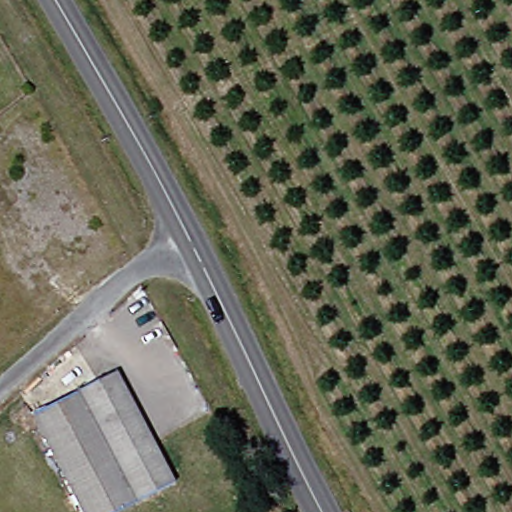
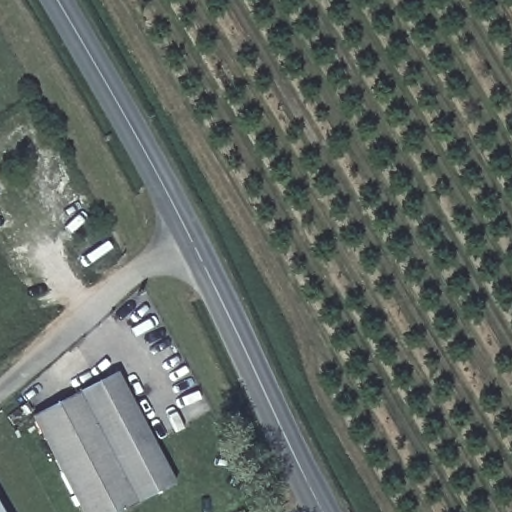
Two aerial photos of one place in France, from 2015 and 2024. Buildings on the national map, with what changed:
unchanged [(113,372),(174,482),(121,512),(83,512),(32,418),(113,372)]
new [(6,512),(0,512),(0,502),(6,512)]

